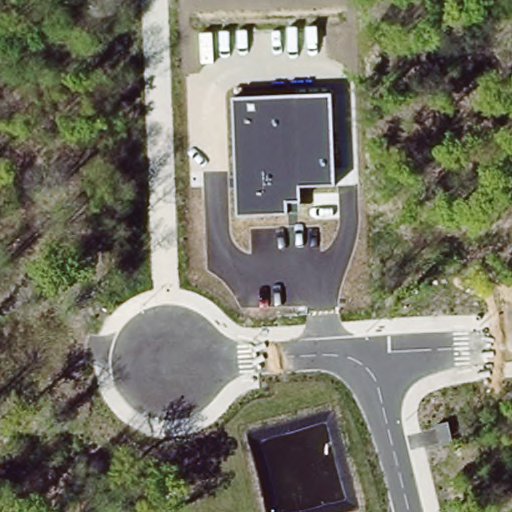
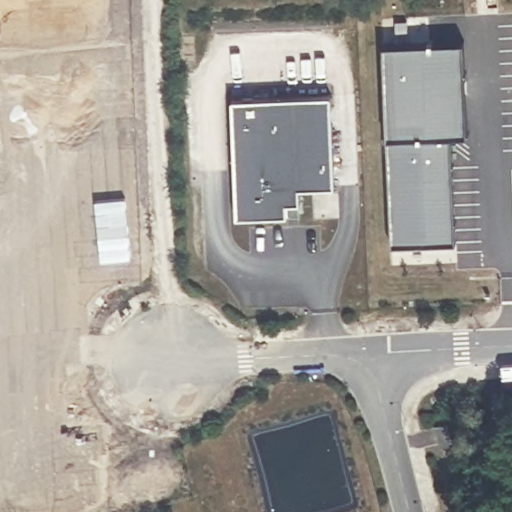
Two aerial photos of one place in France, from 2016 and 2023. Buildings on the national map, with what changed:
new [(393,244),(389,137),(383,43),(463,39),(468,133),(452,134),(458,242),(393,244)]
unchanged [(232,99),(332,94),(334,185),(300,187),(300,202),(300,213),(237,216),(232,99)]

